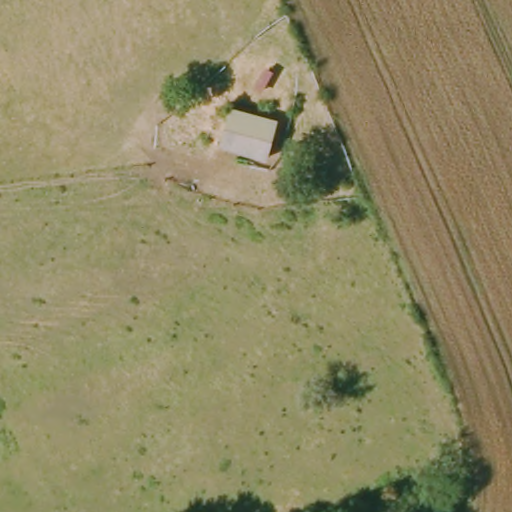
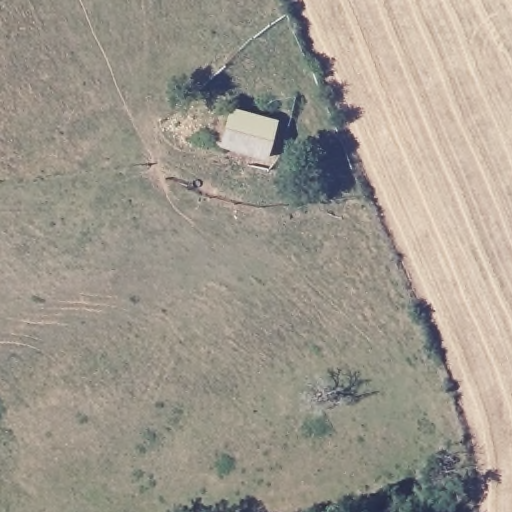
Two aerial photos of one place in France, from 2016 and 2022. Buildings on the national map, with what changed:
unchanged [(286,120),(277,163),(227,151),(238,110),(286,120)]

